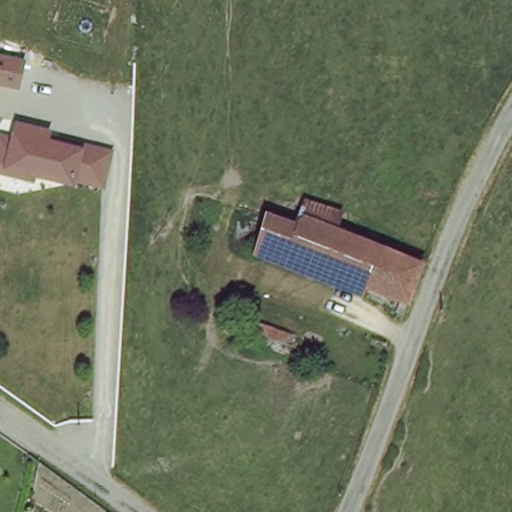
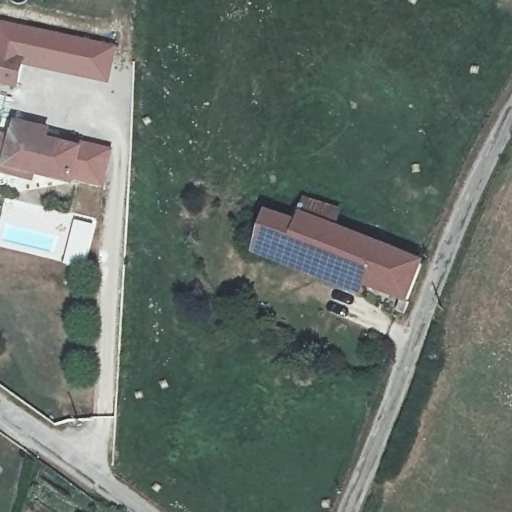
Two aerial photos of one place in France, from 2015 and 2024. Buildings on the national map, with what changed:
new [(117,45),(110,84),(23,66),(18,89),(0,85),(0,20),(117,45)]
unchanged [(37,177),(21,173),(20,179),(12,177),(0,174),(0,139),(3,140),(7,125),(39,133),(36,143),(50,146),(51,141),(98,154),(90,186),(61,178),(60,183),(37,177)]
unchanged [(274,197),(337,217),(333,227),(330,234),(301,223),(297,233),(265,220),(269,210),(274,197)]
unchanged [(297,233),(301,223),(330,234),(420,269),(405,307),(255,249),(265,220),(297,233)]
unchanged [(298,360),(287,355),(265,346),(268,339),(250,331),(255,314),(297,330),(309,335),(298,360)]

